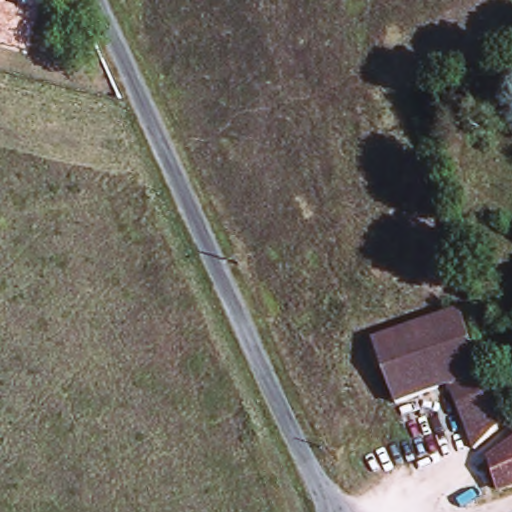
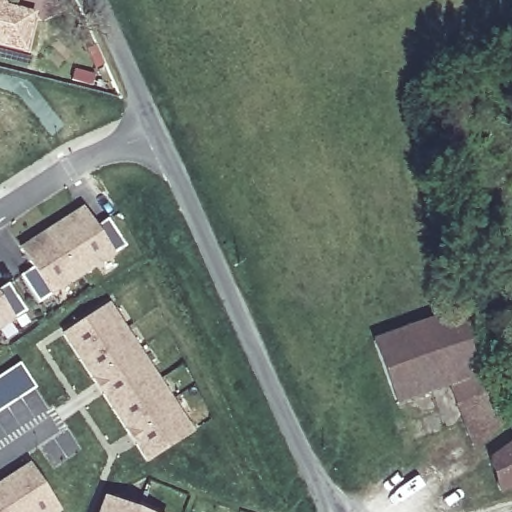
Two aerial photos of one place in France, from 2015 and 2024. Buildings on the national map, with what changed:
unchanged [(10,4),(37,11),(30,52),(0,46),(0,0),(8,0),(10,4)]
new [(39,303),(21,275),(32,268),(17,248),(83,206),(95,227),(109,220),(125,246),(39,303)]
new [(0,328),(0,289),(7,285),(25,312),(0,328)]
new [(145,463),(62,334),(110,303),(193,432),(145,463)]
unchanged [(485,384),(499,424),(475,449),(450,384),(396,403),(374,340),(459,310),(485,384)]
new [(19,361),(35,386),(0,409),(0,374),(19,361)]
unchanged [(512,445),(512,467),(502,451),(512,445)]
unchanged [(512,485),(490,499),(473,471),(502,451),(512,467),(512,485)]
new [(0,512),(0,483),(30,464),(60,511),(60,512),(0,512)]
new [(140,512),(98,512),(104,498),(140,512)]

